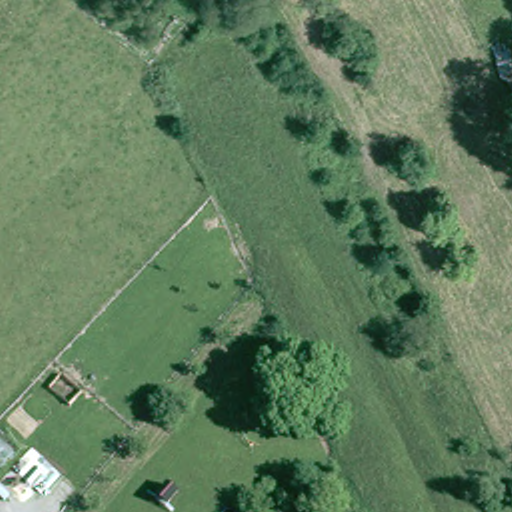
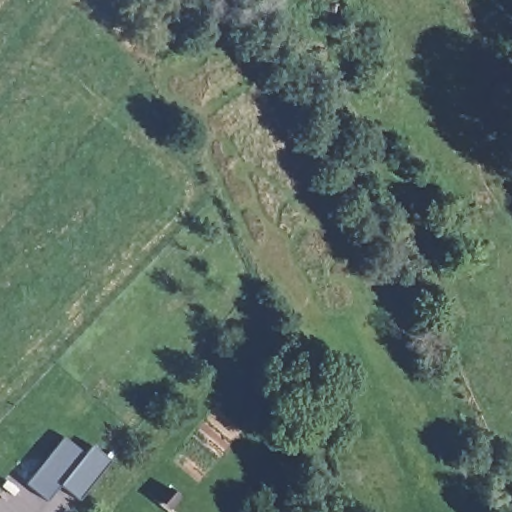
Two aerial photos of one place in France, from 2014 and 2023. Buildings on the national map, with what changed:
new [(64,439),(84,455),(92,445),(112,460),(79,501),(60,487),(48,503),(26,485),(64,439)]

